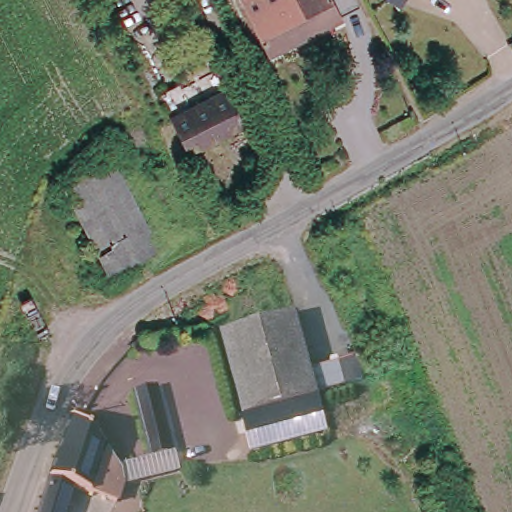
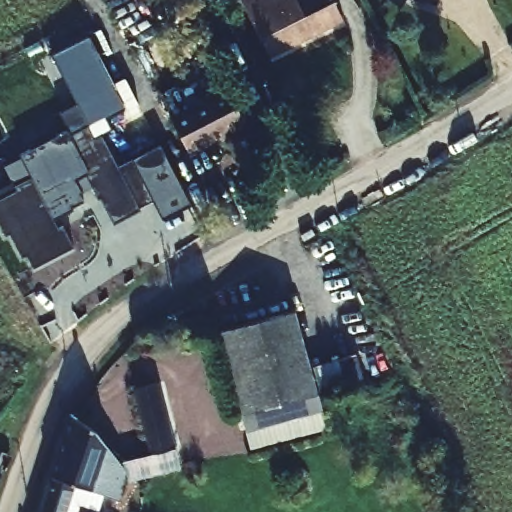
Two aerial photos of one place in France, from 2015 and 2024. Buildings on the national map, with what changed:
unchanged [(241,0),(348,0),(354,10),(280,47),(271,29),(258,35),(241,0)]
new [(53,55),(89,36),(125,106),(104,116),(110,128),(100,134),(117,167),(160,144),(191,204),(162,218),(153,199),(139,206),(140,209),(114,223),(92,185),(80,192),(85,200),(72,206),(74,210),(52,219),(60,230),(62,227),(73,247),(34,267),(27,255),(22,256),(10,234),(5,236),(0,227),(0,187),(12,181),(5,165),(22,156),(21,155),(70,130),(60,111),(76,104),(53,55)]
unchanged [(252,120),(195,150),(177,114),(233,85),(252,120)]
demolished [(110,278),(65,188),(85,178),(131,268),(110,278)]
unchanged [(296,401),(251,412),(224,331),(294,312),(317,395),(296,401)]
unchanged [(355,355),(362,378),(316,391),(310,369),(355,355)]
unchanged [(152,455),(135,390),(158,384),(175,450),(152,455)]
unchanged [(321,410),(256,428),(251,412),(296,401),(317,395),(321,410)]
unchanged [(136,471),(127,496),(85,482),(75,512),(38,512),(72,416),(136,471)]

